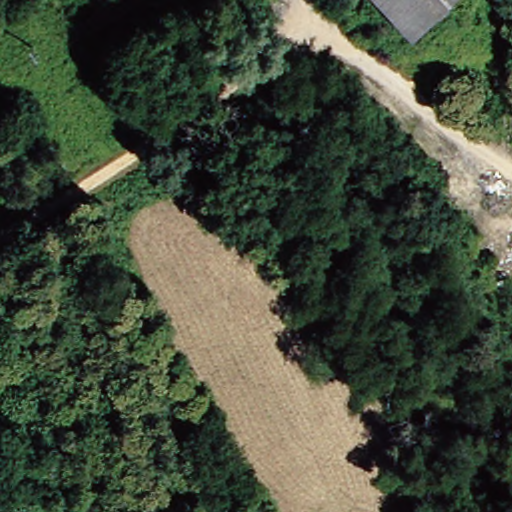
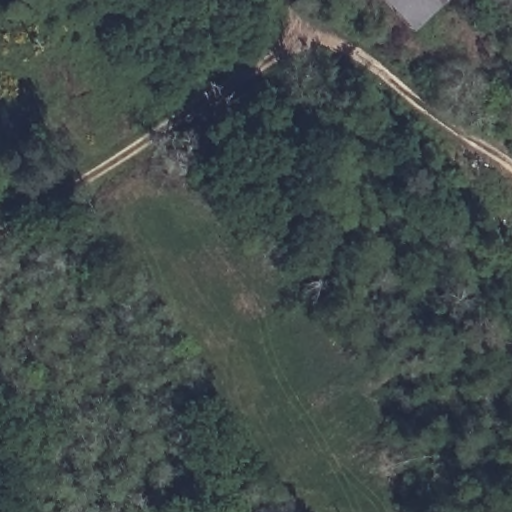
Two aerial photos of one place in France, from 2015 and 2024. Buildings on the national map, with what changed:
unchanged [(406,35),(373,0),(442,0),(406,35)]

